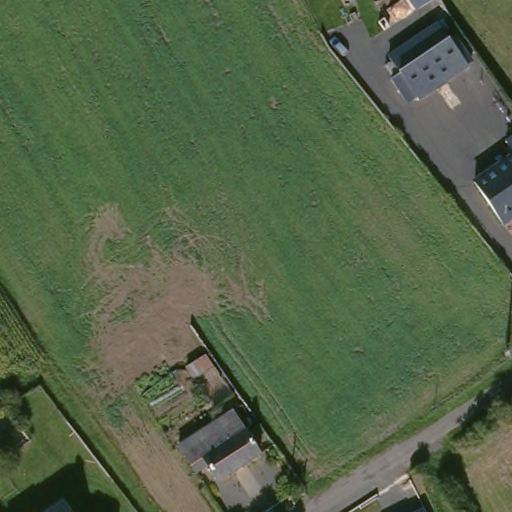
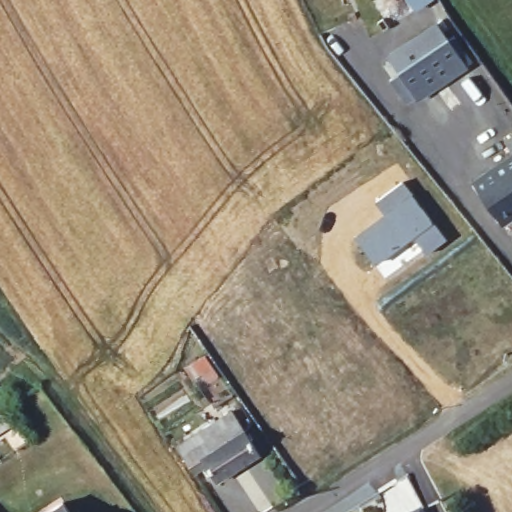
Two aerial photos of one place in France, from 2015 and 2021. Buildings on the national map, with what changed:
new [(408,9),(400,0),(418,0),(408,9)]
unchanged [(470,55),(419,95),(400,71),(387,56),(407,40),(419,55),(450,31),(470,55)]
unchanged [(491,182),(512,166),(512,211),(491,182)]
new [(388,216),(378,202),(403,183),(447,241),(429,255),(415,237),(377,266),(357,239),(388,216)]
unchanged [(0,422),(0,397),(13,414),(0,422)]
unchanged [(240,408),(273,454),(230,484),(214,463),(201,473),(184,448),(240,408)]
unchanged [(83,512),(62,512),(78,502),(83,512)]
unchanged [(427,512),(424,512),(427,511),(427,512)]

